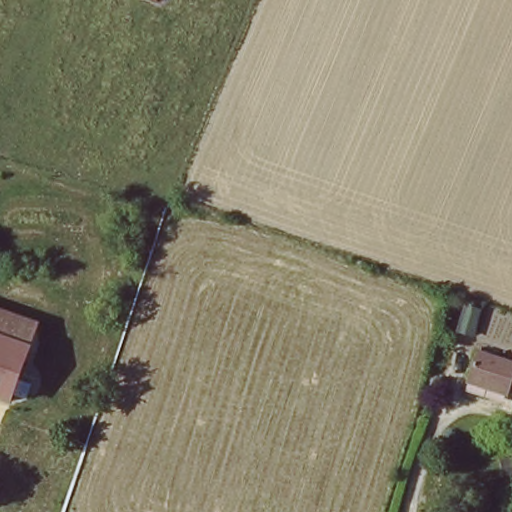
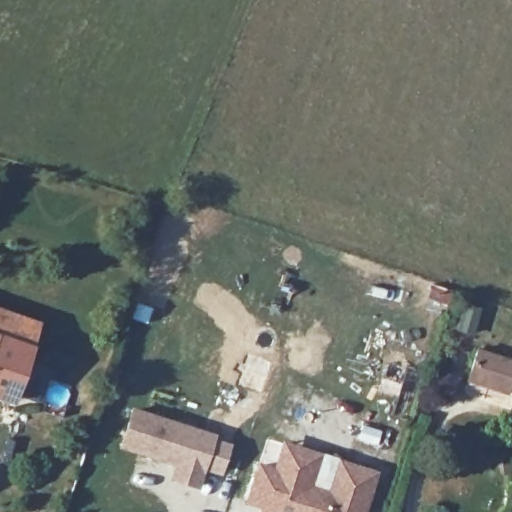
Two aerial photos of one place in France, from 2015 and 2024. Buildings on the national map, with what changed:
unchanged [(0,342),(0,319),(37,331),(31,352),(0,342)]
unchanged [(31,352),(14,406),(0,401),(0,342),(31,352)]
unchanged [(510,387),(506,397),(468,384),(477,353),(512,365),(512,388),(510,387)]
new [(389,358),(457,385),(445,417),(378,392),(389,358)]
new [(216,436),(215,439),(233,445),(223,475),(207,469),(198,489),(169,479),(174,466),(119,448),(133,407),(216,436)]
new [(284,439),(380,470),(366,512),(259,512),(261,507),(244,501),(258,461),(273,465),(284,439)]
demolished [(1,483),(0,483),(0,446),(13,451),(1,483)]

